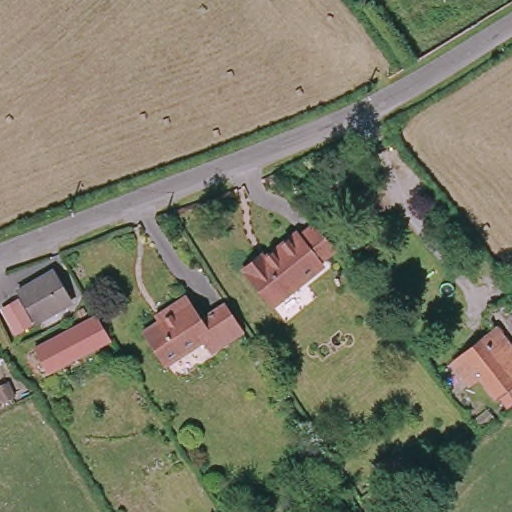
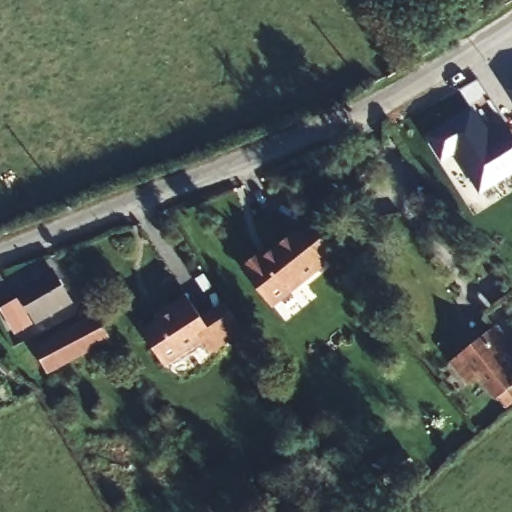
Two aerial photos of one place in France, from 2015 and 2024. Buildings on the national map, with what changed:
new [(507,88),(512,85),(512,96),(507,88)]
new [(485,134),(481,137),(485,143),(508,129),(512,135),(512,167),(478,189),(453,149),(440,157),(427,135),(469,109),(485,134)]
unchanged [(327,240),(334,249),(318,261),(322,265),(272,304),(243,266),(262,252),(264,256),(297,231),(300,235),(314,224),(327,240)]
unchanged [(53,269),(70,300),(37,320),(18,290),(53,269)]
unchanged [(19,300),(33,322),(17,332),(3,309),(19,300)]
unchanged [(203,346),(165,370),(143,337),(174,317),(172,312),(188,301),(202,322),(225,308),(243,336),(210,357),(203,346)]
unchanged [(114,342),(38,382),(27,357),(100,318),(114,342)]
unchanged [(500,327),(512,341),(512,387),(500,396),(484,376),(475,383),(457,362),(500,327)]
unchanged [(385,458),(387,462),(403,452),(412,467),(382,485),(372,466),(385,458)]

